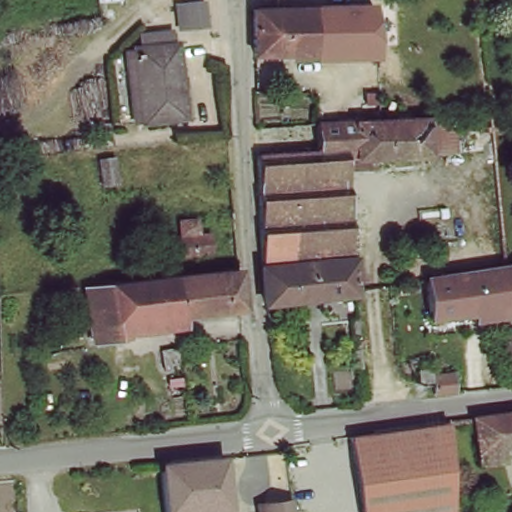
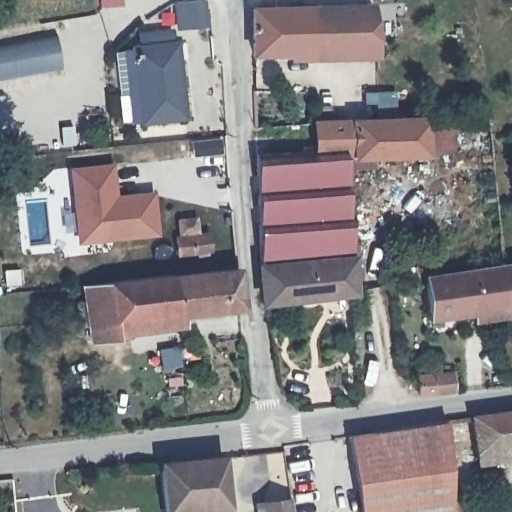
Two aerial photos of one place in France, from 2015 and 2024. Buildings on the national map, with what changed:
unchanged [(96,1),(96,0),(106,0),(96,1)]
unchanged [(254,54),(253,10),(369,5),(375,53),(254,54)]
new [(62,69),(0,79),(0,43),(56,32),(62,69)]
unchanged [(130,59),(138,57),(137,52),(146,51),(144,39),(173,35),(175,47),(180,47),(188,122),(146,127),(146,125),(138,125),(130,59)]
unchanged [(357,260),(265,266),(265,258),(262,180),(261,160),(265,160),(273,160),(273,156),(288,155),(288,159),(294,159),(294,155),(308,154),(308,155),(308,158),(318,157),(322,157),(321,149),(320,129),(354,127),(432,125),(460,124),(461,157),(435,159),(350,164),(357,260)]
demolished [(96,160),(113,159),(115,184),(98,185),(96,160)]
new [(76,244),(69,168),(112,164),(116,195),(153,192),(158,235),(76,244)]
unchanged [(178,255),(177,237),(207,235),(209,253),(178,255)]
unchanged [(358,299),(268,308),(265,272),(357,264),(358,299)]
unchanged [(429,318),(425,280),(504,267),(512,266),(512,306),(429,318)]
unchanged [(112,282),(174,275),(174,277),(237,270),(243,305),(127,320),(129,335),(118,336),(112,282)]
unchanged [(118,336),(93,340),(85,286),(112,282),(118,336)]
unchanged [(507,366),(503,337),(512,337),(512,366),(507,366)]
unchanged [(413,370),(427,368),(427,369),(428,380),(413,381),(413,370)]
unchanged [(452,394),(432,395),(432,377),(452,376),(452,394)]
unchanged [(466,424),(512,417),(512,453),(472,458),(466,424)]
unchanged [(445,512),(353,512),(343,442),(440,427),(445,488),(445,512)]
unchanged [(217,463),(221,511),(212,512),(160,512),(156,470),(217,463)]
unchanged [(292,512),(261,512),(260,504),(290,500),(292,512)]

